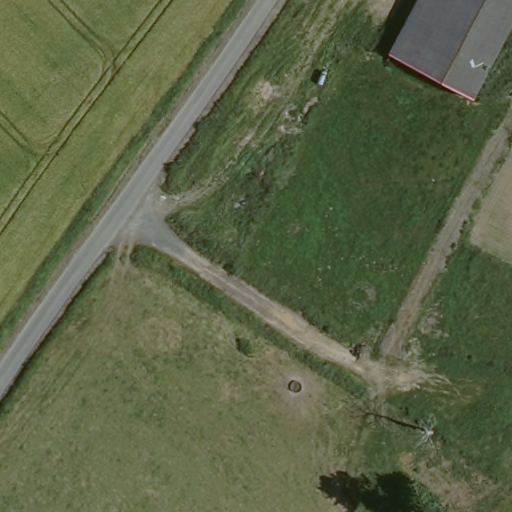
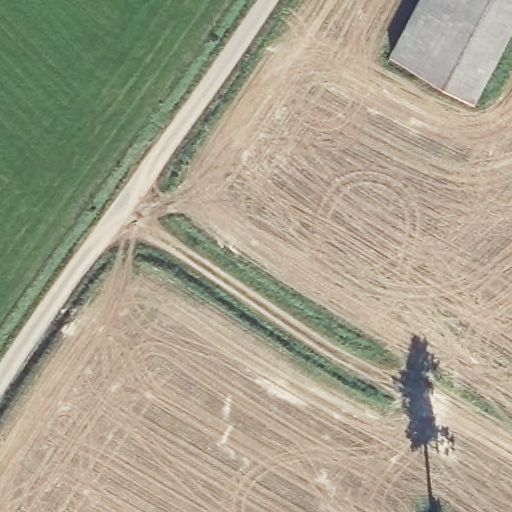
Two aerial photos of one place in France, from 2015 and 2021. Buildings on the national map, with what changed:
unchanged [(390,58),(423,0),(512,0),(512,16),(464,101),(390,58)]

